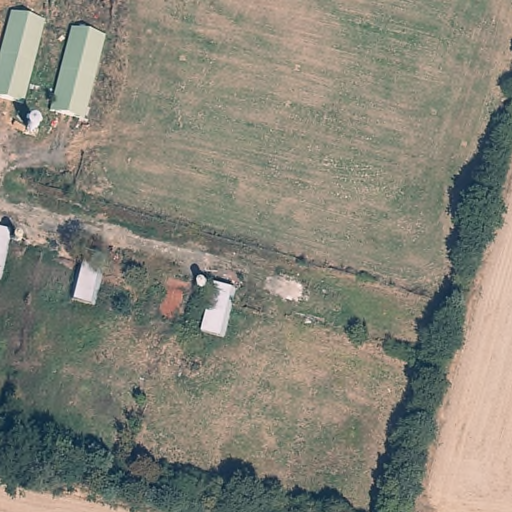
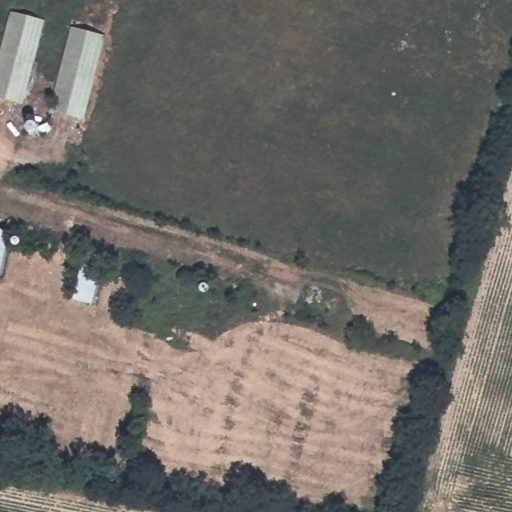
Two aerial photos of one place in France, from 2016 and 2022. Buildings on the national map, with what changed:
unchanged [(44,22),(23,105),(0,99),(0,39),(7,12),(44,22)]
unchanged [(104,37),(81,124),(48,115),(70,27),(104,37)]
unchanged [(7,226),(0,262),(0,224),(7,226)]
unchanged [(84,257),(107,262),(96,309),(72,303),(84,257)]
unchanged [(179,279),(200,285),(186,335),(166,325),(179,279)]
unchanged [(214,292),(237,298),(225,343),(202,337),(214,292)]

